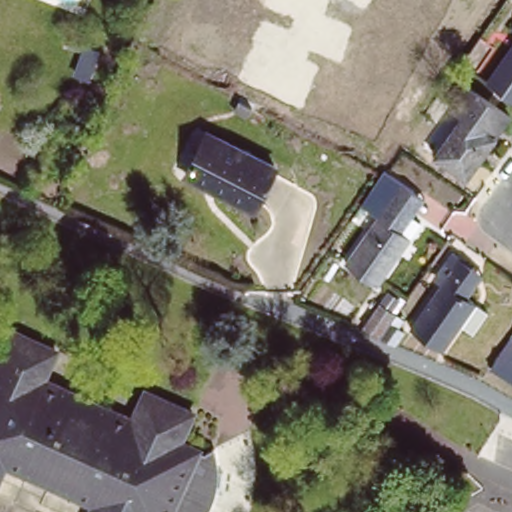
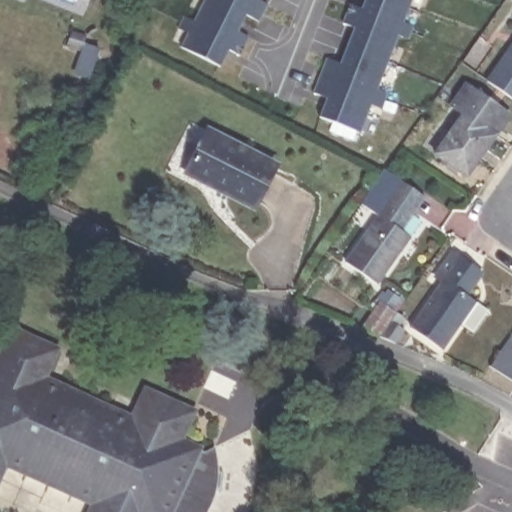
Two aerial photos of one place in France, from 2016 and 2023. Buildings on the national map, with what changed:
new [(186,34),(176,29),(182,16),(193,21),(204,0),(258,0),(265,4),(256,21),(245,16),(237,32),(247,37),(238,56),(227,51),(219,68),(177,47),(186,34)]
new [(327,98),(312,93),(325,59),(340,64),(355,28),(342,24),(348,5),(361,10),(365,0),(410,0),(400,24),(410,27),(406,40),(395,36),(375,89),(385,92),(378,110),(367,106),(357,134),(317,118),(327,98)]
new [(101,48),(90,82),(72,76),(80,52),(66,48),(72,31),(74,32),(77,19),(91,23),(88,36),(84,44),(101,48)]
demolished [(91,23),(88,36),(74,32),(77,19),(91,23)]
unchanged [(512,26),(512,40),(505,36),(512,26)]
unchanged [(512,46),(512,108),(484,88),(512,46)]
unchanged [(505,121),(462,184),(433,163),(460,124),(450,116),(465,93),(505,121)]
unchanged [(274,168),(251,209),(185,172),(206,132),(274,168)]
new [(382,191),(370,208),(361,203),(383,169),(425,197),(413,214),(382,191)]
unchanged [(349,257),(379,214),(370,208),(382,191),(422,220),(380,279),(349,257)]
unchanged [(471,269),(479,274),(473,282),(465,294),(482,307),(466,329),(456,322),(440,345),(410,324),(439,281),(432,277),(448,253),(471,269)]
unchanged [(385,330),(382,334),(367,323),(383,300),(398,310),(400,308),(411,315),(396,338),(385,330)]
unchanged [(11,326),(60,348),(48,376),(130,413),(142,386),(190,407),(178,434),(208,448),(218,444),(217,458),(214,480),(210,492),(205,502),(199,512),(85,512),(91,498),(10,460),(0,480),(0,351),(11,326)]
unchanged [(512,377),(489,361),(508,332),(512,334),(512,377)]

